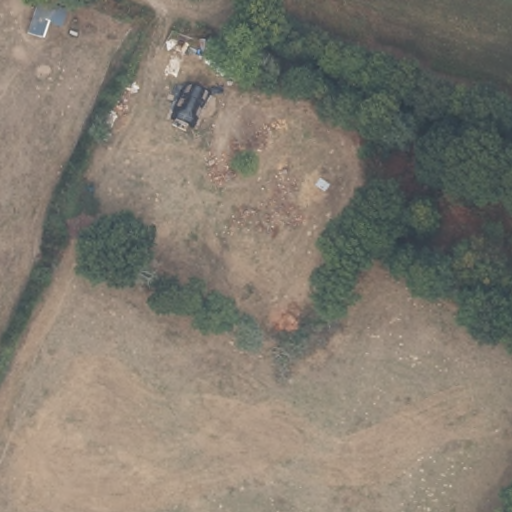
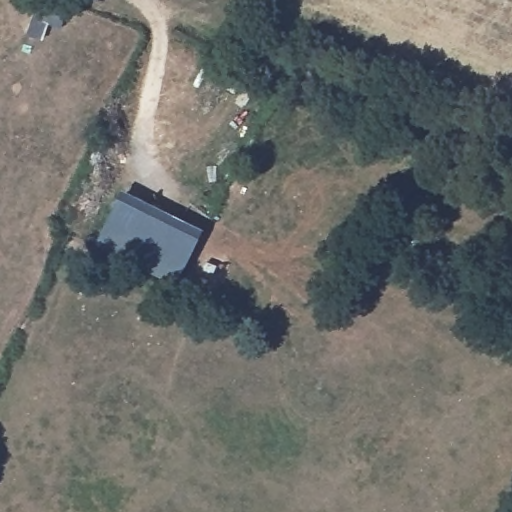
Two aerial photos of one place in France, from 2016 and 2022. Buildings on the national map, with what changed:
new [(121,189),(202,229),(175,285),(94,245),(121,189)]

